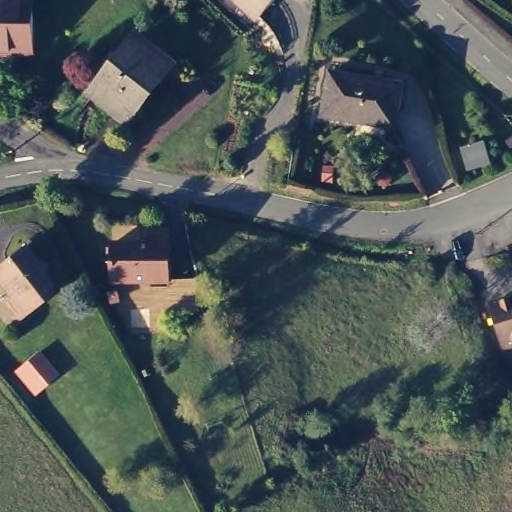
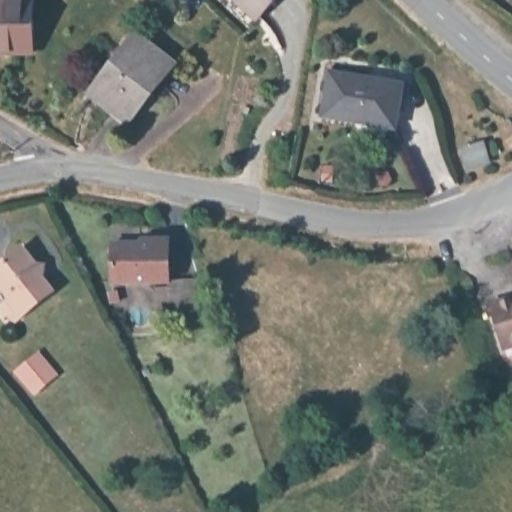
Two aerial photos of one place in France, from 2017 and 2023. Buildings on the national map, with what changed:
unchanged [(37,53),(0,53),(0,0),(5,0),(5,2),(5,10),(38,10),(37,53)]
unchanged [(269,12),(256,0),(280,0),(269,12)]
unchanged [(116,51),(126,59),(142,38),(176,65),(132,120),(89,85),(116,51)]
unchanged [(402,76),(395,117),(324,105),(331,64),(402,76)]
unchanged [(469,168),(464,149),(482,143),(489,163),(469,168)]
unchanged [(333,167),(332,181),(323,181),(324,167),(333,167)]
unchanged [(147,239),(147,235),(169,235),(169,277),(112,277),(112,239),(147,239)]
unchanged [(0,280),(0,262),(23,244),(36,260),(44,261),(42,273),(52,286),(22,311),(10,296),(12,295),(0,280)]
unchanged [(512,288),(512,335),(505,337),(492,294),(512,288)]
unchanged [(39,352),(57,375),(35,394),(16,372),(39,352)]

